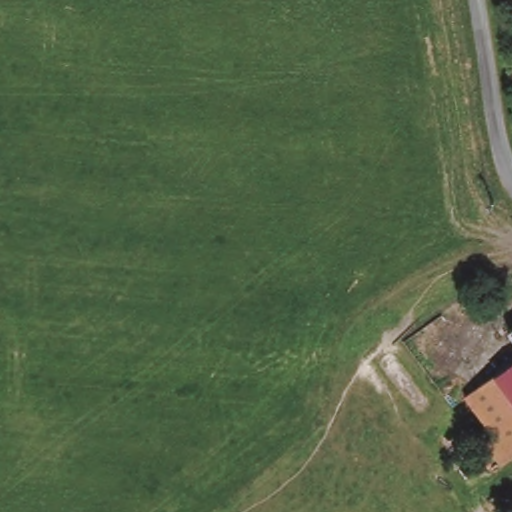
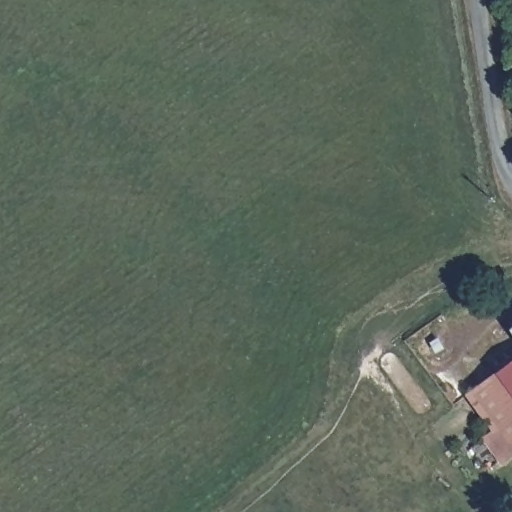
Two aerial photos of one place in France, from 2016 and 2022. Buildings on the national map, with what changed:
unchanged [(485,443),(493,436),(496,432),(472,401),(512,371),(512,462),(503,468),(485,443)]

